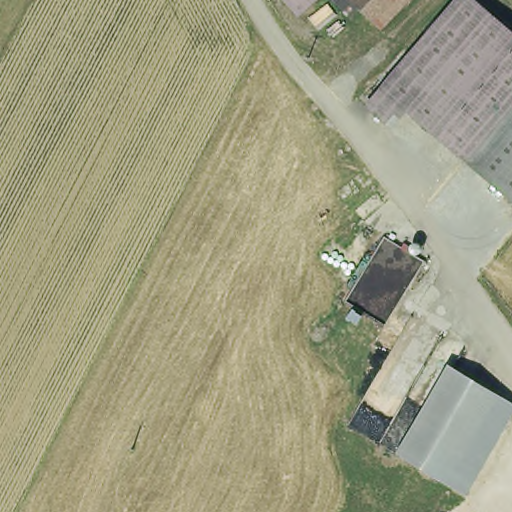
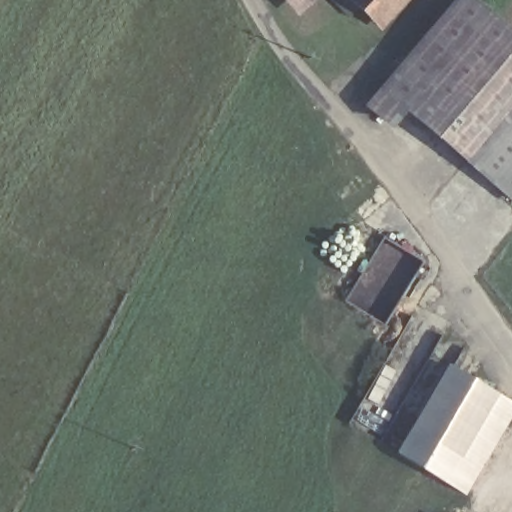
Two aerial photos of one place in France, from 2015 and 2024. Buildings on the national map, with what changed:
unchanged [(291,0),(302,0),(296,6),(291,0)]
unchanged [(358,0),(409,0),(382,26),(358,0)]
unchanged [(385,123),(372,112),(468,0),(472,0),(489,14),(385,123)]
unchanged [(389,127),(385,123),(489,14),(512,34),(512,63),(442,140),(405,108),(389,127)]
unchanged [(442,140),(512,63),(512,121),(473,166),(442,140)]
unchanged [(512,121),(512,165),(496,185),(473,166),(512,121)]
unchanged [(512,165),(512,199),(496,185),(512,165)]
unchanged [(402,455),(452,368),(495,394),(445,480),(402,455)]
unchanged [(512,412),(465,492),(445,480),(495,394),(512,403),(512,412)]

